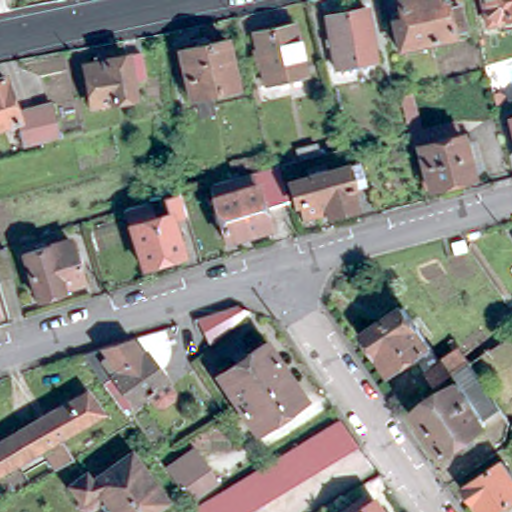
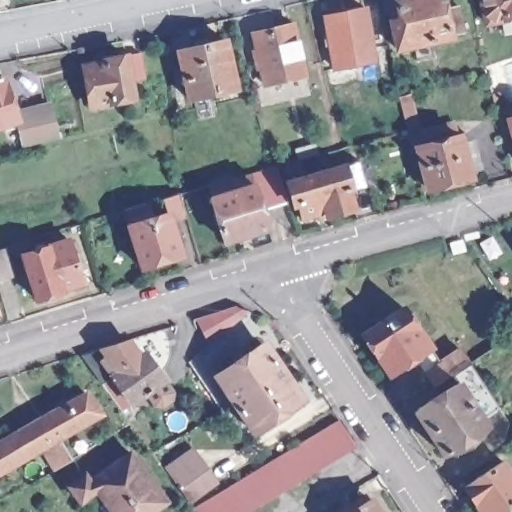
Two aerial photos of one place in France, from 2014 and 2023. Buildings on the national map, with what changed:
unchanged [(402,23),(397,5),(417,0),(440,0),(444,14),(458,10),(465,36),(399,52),(392,25),(402,23)]
unchanged [(512,0),(512,15),(487,22),(482,0),(512,0)]
unchanged [(325,16),(364,7),(376,57),(337,67),(325,16)]
unchanged [(252,32),(294,23),(306,75),(266,85),(252,32)]
unchanged [(237,86),(188,97),(179,50),(226,40),(237,86)]
unchanged [(80,61),(101,58),(100,53),(135,48),(141,72),(127,76),(130,93),(86,100),(80,61)]
unchanged [(0,72),(1,71),(14,104),(47,92),(65,132),(26,141),(15,115),(0,120),(0,72)]
unchanged [(317,97),(300,100),(297,89),(314,85),(317,97)]
unchanged [(510,120),(512,119),(512,127),(510,120)]
unchanged [(471,180),(430,188),(420,146),(460,136),(471,180)]
unchanged [(316,145),(317,155),(300,160),(297,150),(316,145)]
unchanged [(359,186),(344,191),(349,207),(318,217),(317,214),(300,219),(296,205),(289,206),(282,184),(305,177),(304,171),(330,163),(332,170),(352,164),(359,186)]
unchanged [(263,230),(218,242),(206,199),(207,195),(204,185),(266,167),(272,165),(285,205),(259,212),(263,230)]
unchanged [(142,272),(125,215),(148,209),(152,221),(167,217),(163,205),(180,200),(187,223),(172,228),(182,260),(142,272)]
unchanged [(466,244),(467,251),(446,257),(444,250),(441,239),(452,236),(465,233),(466,244)]
unchanged [(69,284),(68,287),(42,295),(29,249),(75,235),(79,249),(84,247),(86,256),(81,257),(88,278),(69,284)]
unchanged [(15,278),(0,282),(0,248),(6,246),(15,278)]
unchanged [(364,330),(403,302),(432,342),(391,370),(364,330)]
unchanged [(198,319),(239,306),(251,311),(210,345),(198,319)]
unchanged [(0,314),(0,311),(1,314),(0,314)]
unchanged [(422,367),(441,354),(452,346),(446,337),(451,333),(457,343),(466,357),(449,368),(430,381),(422,367)]
unchanged [(146,348),(151,345),(157,353),(180,385),(179,392),(168,400),(161,398),(152,386),(126,405),(87,349),(129,335),(135,334),(146,348)]
unchanged [(263,343),(277,363),(280,361),(305,398),(256,432),(230,395),(232,393),(219,373),(263,343)]
unchanged [(469,435),(456,443),(454,440),(440,448),(411,405),(453,377),(469,367),(497,407),(480,419),(482,421),(467,431),(469,435)]
unchanged [(0,470),(0,441),(92,387),(105,409),(64,432),(77,454),(59,465),(46,443),(0,470)]
unchanged [(357,437),(345,445),(344,448),(237,512),(200,512),(195,503),(341,414),(357,437)]
unchanged [(217,478),(189,496),(181,485),(165,464),(192,445),(217,478)]
unchanged [(96,486),(79,497),(67,481),(83,470),(89,478),(130,448),(167,496),(145,512),(116,512),(96,486)]
unchanged [(489,512),(486,512),(467,483),(502,460),(512,474),(512,497),(489,512)]
unchanged [(381,512),(343,512),(343,511),(359,500),(362,505),(372,498),(381,512)]

